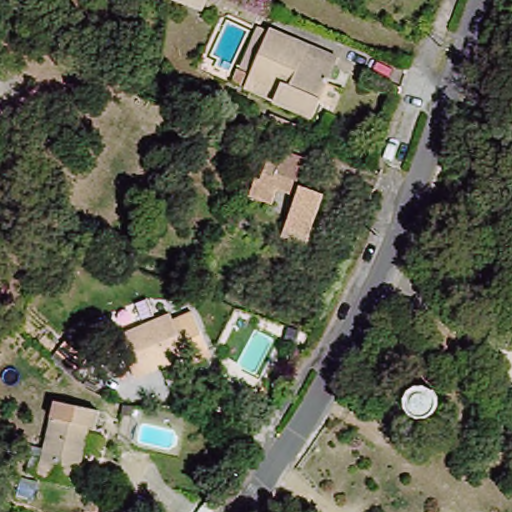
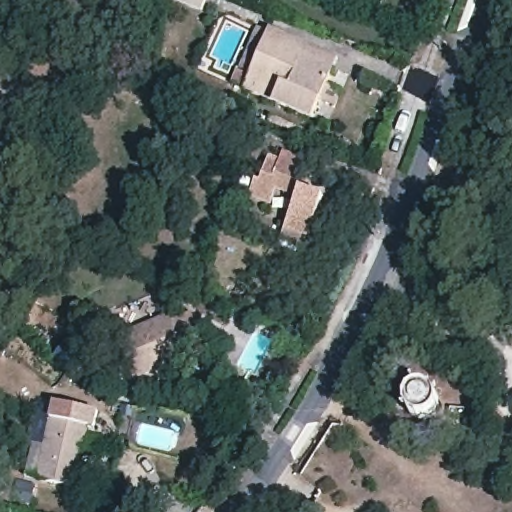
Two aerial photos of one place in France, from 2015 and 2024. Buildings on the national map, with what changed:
unchanged [(207,13),(172,0),(213,0),(207,13)]
unchanged [(249,70),(238,65),(251,32),(263,37),(267,26),(308,42),(339,55),(335,65),(313,116),(273,102),(241,90),(246,78),(249,70)]
unchanged [(233,73),(243,77),(236,91),(228,87),(233,73)]
unchanged [(263,162),(267,164),(277,141),(289,146),(292,138),(314,147),(303,173),(328,185),(311,226),(287,216),(299,188),(281,179),(275,192),(254,183),(263,162)]
unchanged [(130,320),(135,333),(189,310),(207,352),(153,374),(142,346),(127,352),(115,326),(130,320)]
unchanged [(35,473),(53,395),(98,407),(80,485),(35,473)]

